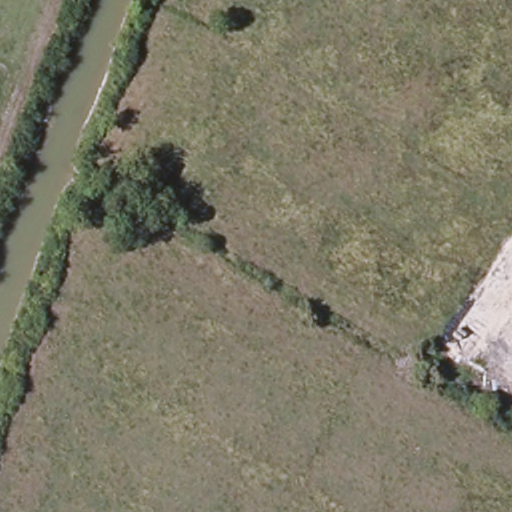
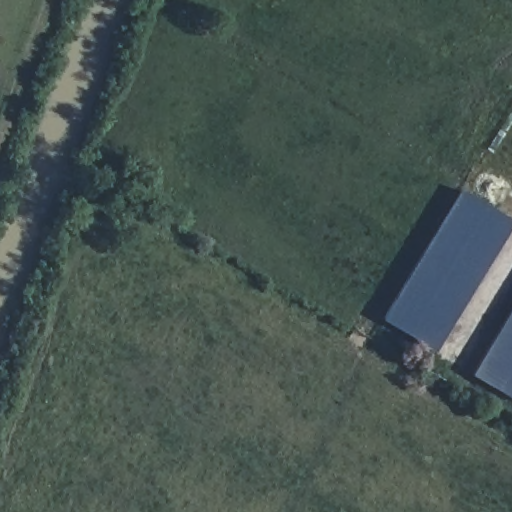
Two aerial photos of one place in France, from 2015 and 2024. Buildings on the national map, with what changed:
new [(434,351),(383,319),(461,190),(512,221),(512,222),(434,351)]
new [(472,375),(512,308),(512,400),(472,375)]

